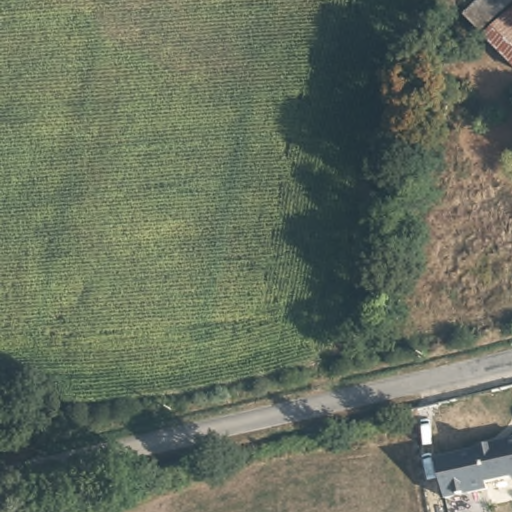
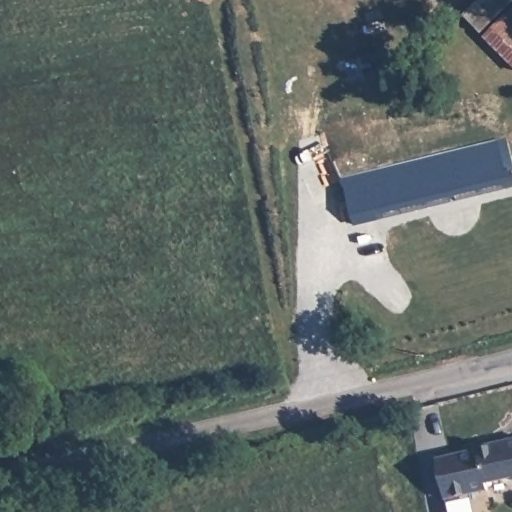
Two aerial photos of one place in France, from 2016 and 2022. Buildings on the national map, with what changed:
unchanged [(481,29),(463,9),(473,0),(511,0),(481,29)]
unchanged [(487,35),(512,11),(512,59),(487,35)]
new [(355,226),(342,179),(498,142),(506,140),(512,165),(512,186),(355,226)]
unchanged [(508,475),(483,480),(476,444),(512,437),(512,477),(508,475)]
new [(485,491),(445,499),(436,458),(477,448),(483,480),(485,491)]

